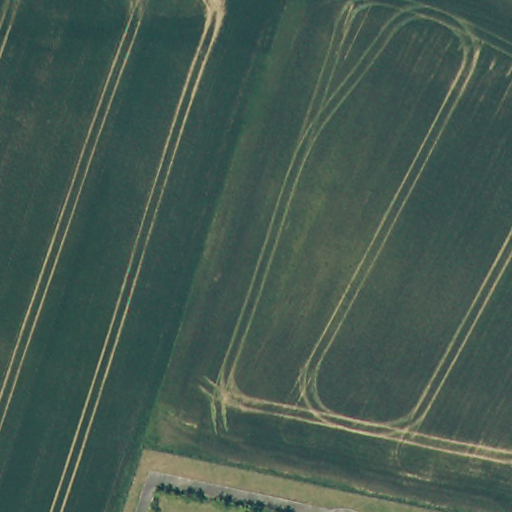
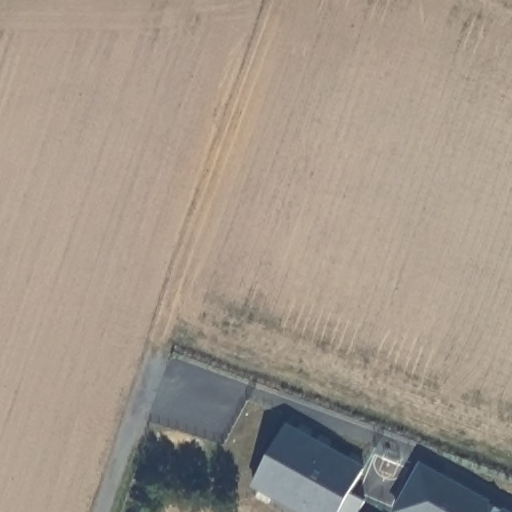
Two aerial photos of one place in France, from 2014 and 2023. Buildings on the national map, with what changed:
new [(352,493),(367,502),(361,512),(303,512),(256,485),(288,425),(366,469),(352,493)]
new [(421,463),(511,512),(393,512),(421,463)]

